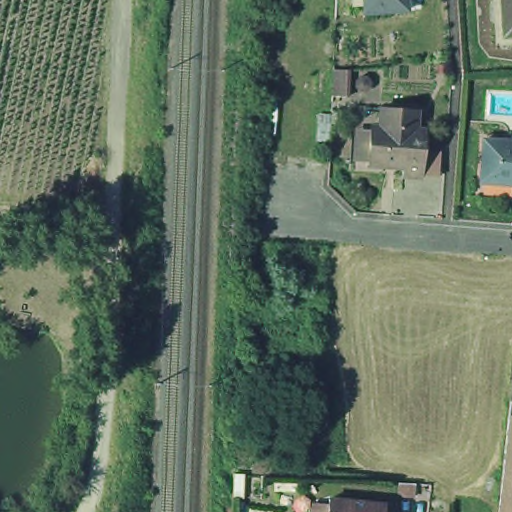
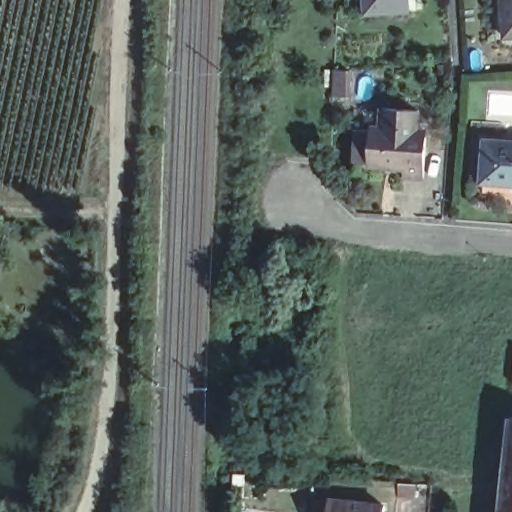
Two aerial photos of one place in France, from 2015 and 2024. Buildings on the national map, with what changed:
unchanged [(360,0),(403,0),(404,12),(360,14),(360,0)]
unchanged [(512,38),(504,39),(501,0),(512,0),(512,38)]
unchanged [(407,179),(408,170),(372,168),(374,127),(412,130),(412,136),(430,137),(427,180),(407,179)]
unchanged [(512,148),(512,190),(485,188),(487,147),(512,148)]
unchanged [(512,417),(512,512),(487,512),(497,416),(512,417)]
unchanged [(226,495),(227,471),(240,472),(239,496),(226,495)]
unchanged [(397,483),(416,484),(415,497),(397,497),(397,483)]
unchanged [(330,505),(379,510),(378,512),(323,512),(324,504),(330,505)]

